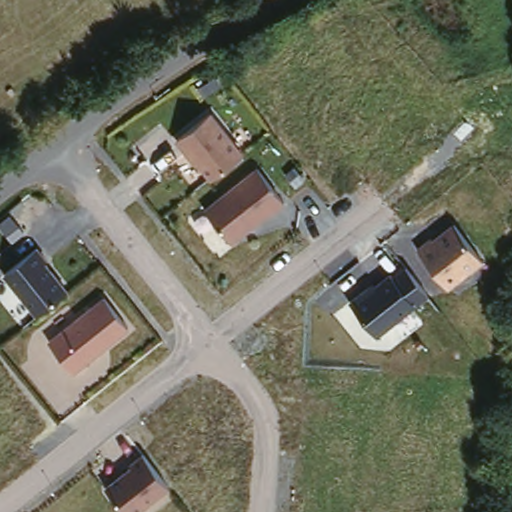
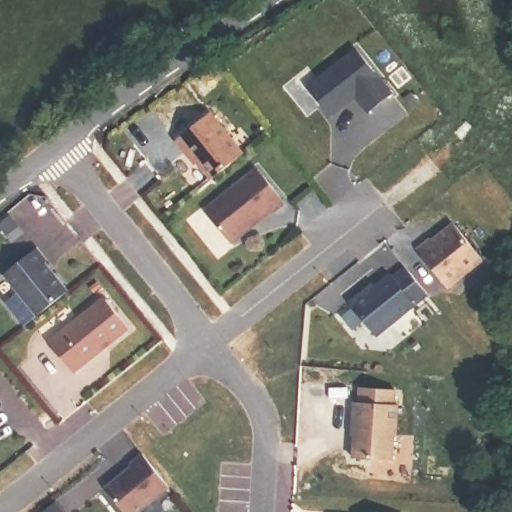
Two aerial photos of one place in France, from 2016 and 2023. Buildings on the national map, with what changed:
new [(351,56),(387,101),(363,120),(350,103),(325,123),(302,95),(351,56)]
unchanged [(177,140),(214,113),(246,155),(208,181),(177,140)]
unchanged [(258,168),(283,204),(232,245),(204,209),(258,168)]
unchanged [(417,250),(451,222),(484,260),(447,289),(417,250)]
unchanged [(4,273),(37,245),(50,261),(46,265),(69,295),(37,316),(4,273)]
unchanged [(350,302),(404,263),(425,293),(398,315),(400,319),(376,336),(350,302)]
unchanged [(105,297),(130,329),(74,375),(47,342),(105,297)]
new [(386,397),(385,413),(389,413),(388,442),(385,442),(384,467),(345,465),(348,428),(345,428),(347,410),(351,410),(352,395),(386,397)]
unchanged [(143,456),(169,487),(137,512),(125,512),(104,487),(143,456)]

